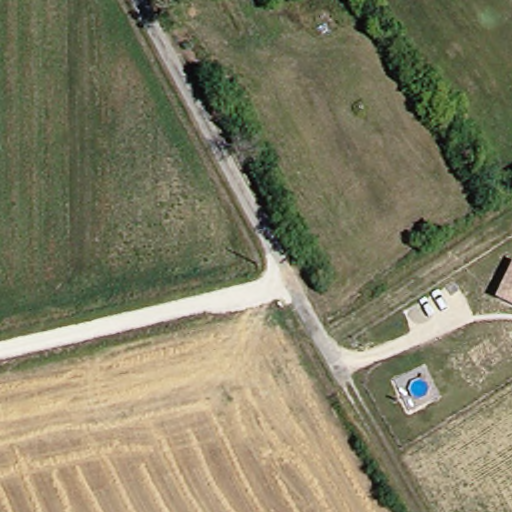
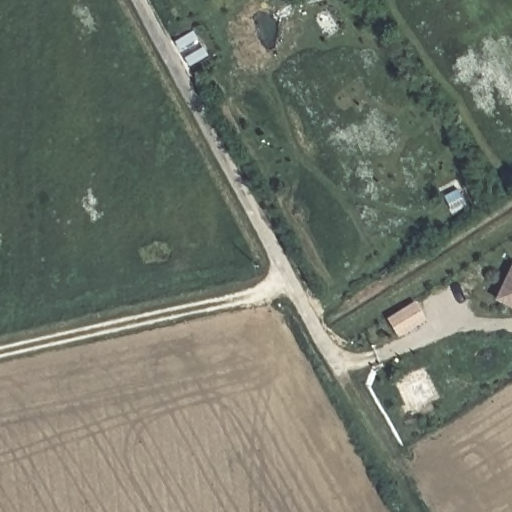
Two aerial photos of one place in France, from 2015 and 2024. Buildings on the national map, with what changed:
unchanged [(502,302),(512,280),(512,306),(502,302)]

